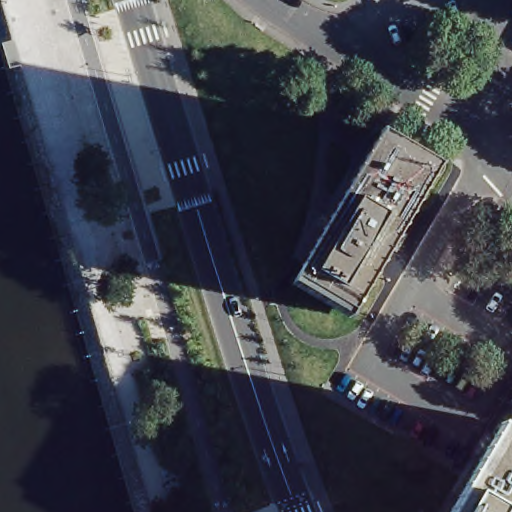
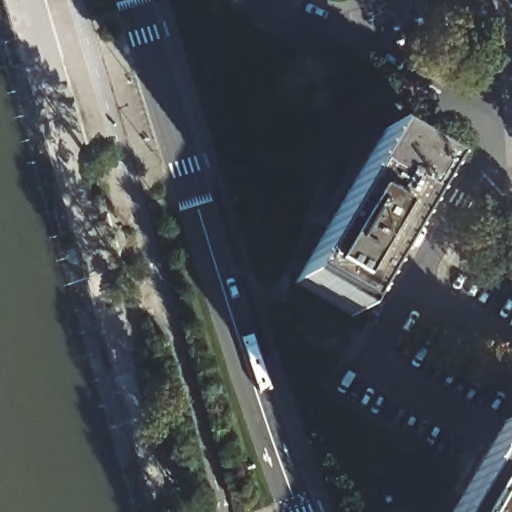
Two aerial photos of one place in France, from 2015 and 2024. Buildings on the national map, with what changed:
unchanged [(291,275),(379,127),(434,159),(347,307),(291,275)]
unchanged [(501,418),(512,425),(512,512),(446,512),(501,418)]

